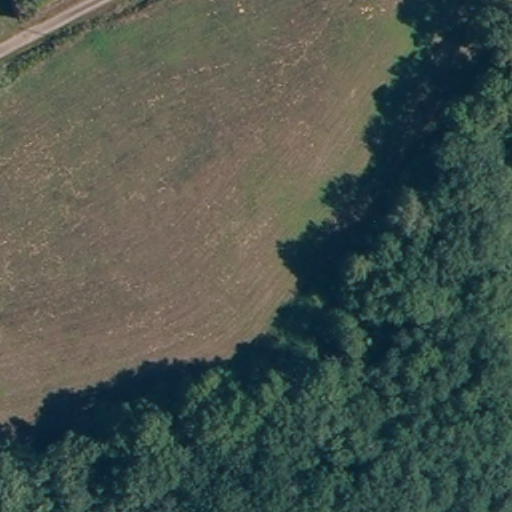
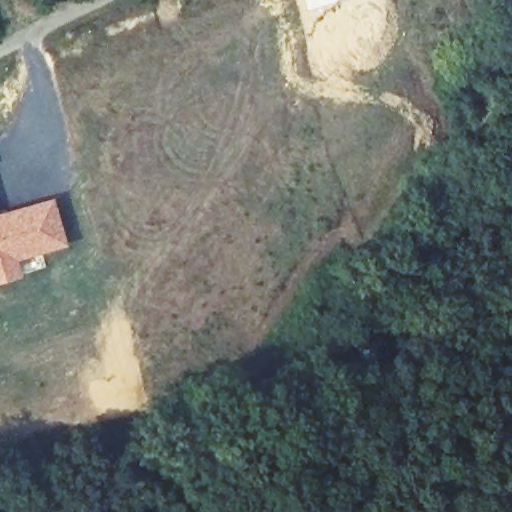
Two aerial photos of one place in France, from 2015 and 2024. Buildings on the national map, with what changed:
unchanged [(27,15),(23,0),(35,0),(35,1),(37,11),(27,15)]
new [(54,196),(68,247),(18,261),(22,278),(0,284),(0,211),(54,196)]

